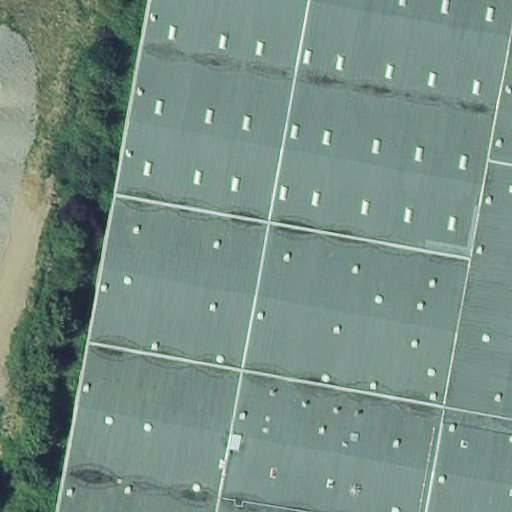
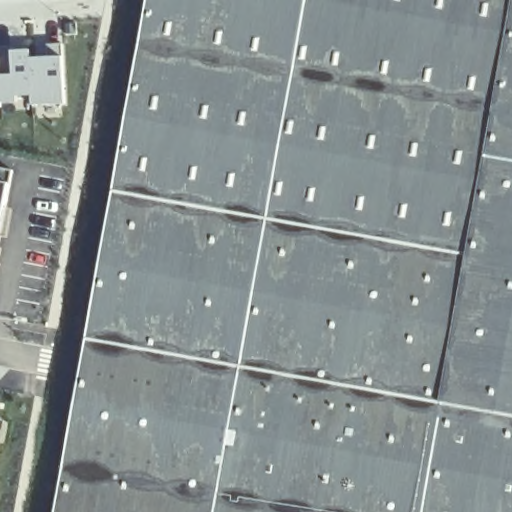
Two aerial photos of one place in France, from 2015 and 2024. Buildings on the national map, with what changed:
unchanged [(152,0),(512,0),(512,512),(60,512),(152,0)]
new [(62,34),(65,104),(0,105),(0,35),(62,34)]

